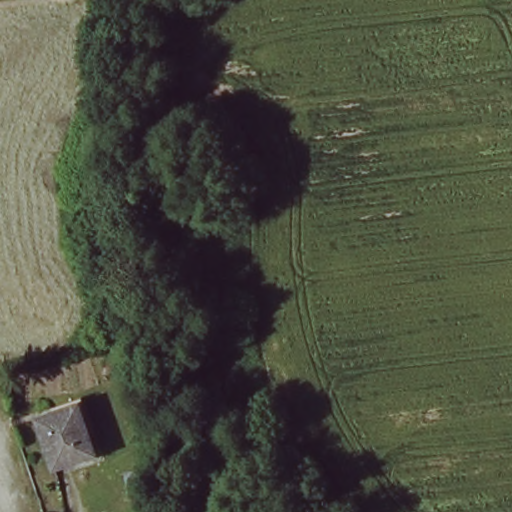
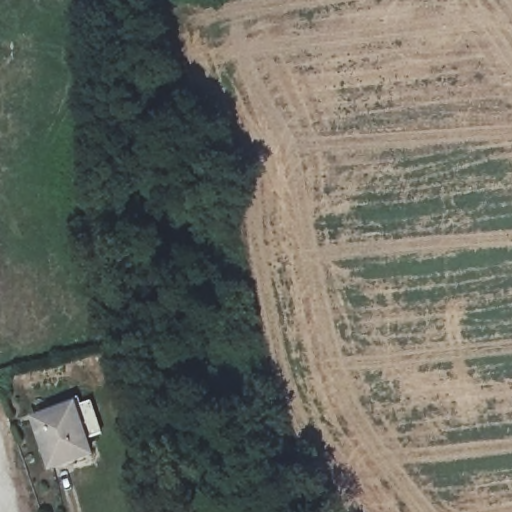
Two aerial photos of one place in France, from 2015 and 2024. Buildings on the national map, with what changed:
unchanged [(94,450),(51,463),(35,415),(76,400),(94,450)]

